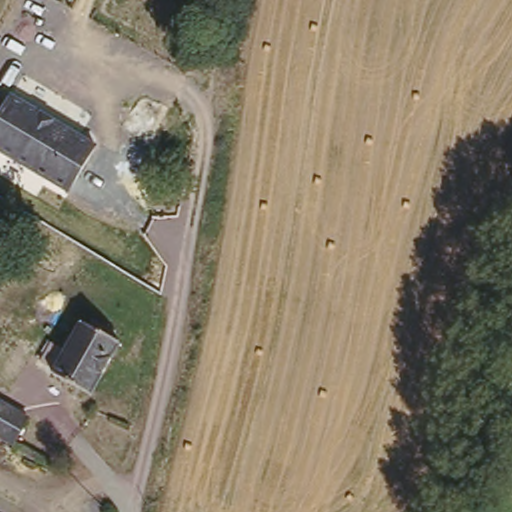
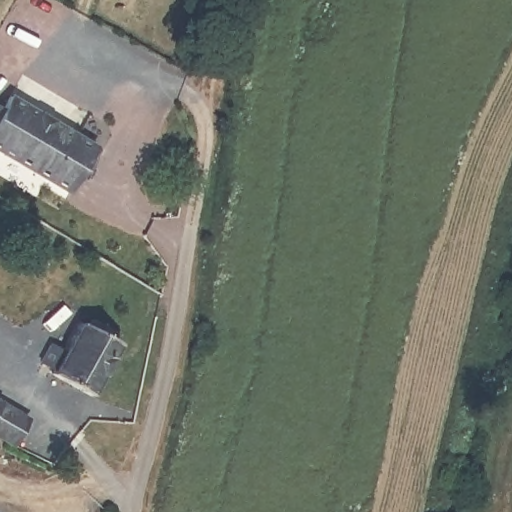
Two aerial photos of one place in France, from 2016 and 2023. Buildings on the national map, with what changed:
unchanged [(75,191),(0,148),(0,103),(7,107),(17,94),(103,145),(75,191)]
unchanged [(6,211),(19,217),(10,231),(0,226),(0,221),(6,211)]
unchanged [(92,325),(99,314),(111,321),(125,329),(119,340),(124,343),(92,393),(52,372),(84,320),(92,325)]
unchanged [(41,418),(25,445),(0,431),(0,396),(41,418)]

